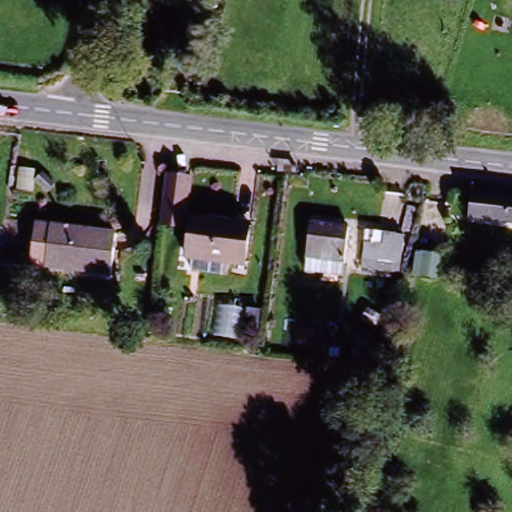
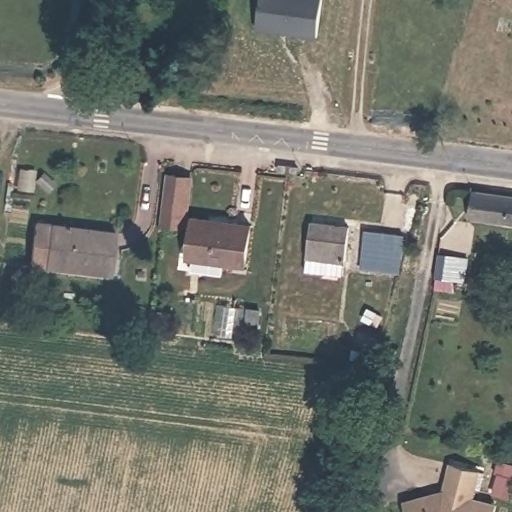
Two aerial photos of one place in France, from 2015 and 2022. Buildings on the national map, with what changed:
new [(318,37),(256,30),(261,0),(323,0),(318,37)]
unchanged [(189,179),(182,232),(158,229),(165,176),(189,179)]
unchanged [(482,193),(512,197),(512,222),(480,217),(482,193)]
unchanged [(241,256),(187,249),(192,212),(246,220),(241,256)]
unchanged [(112,271),(33,262),(38,221),(117,231),(112,271)]
unchanged [(402,269),(362,265),(365,230),(405,235),(402,269)]
unchanged [(304,268),(308,241),(343,247),(339,275),(304,268)]
new [(477,499),(498,505),(496,512),(407,512),(403,502),(442,490),(450,462),(482,472),(477,499)]

